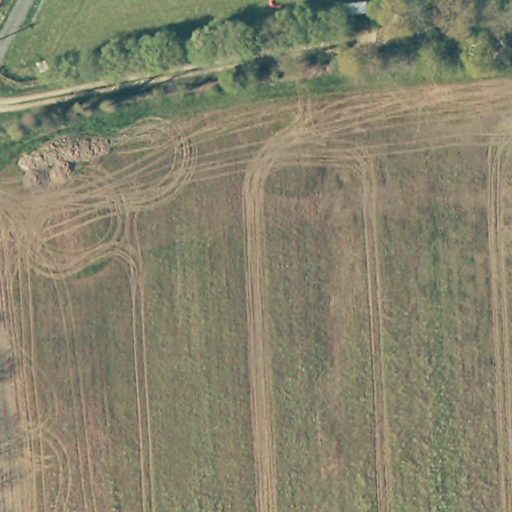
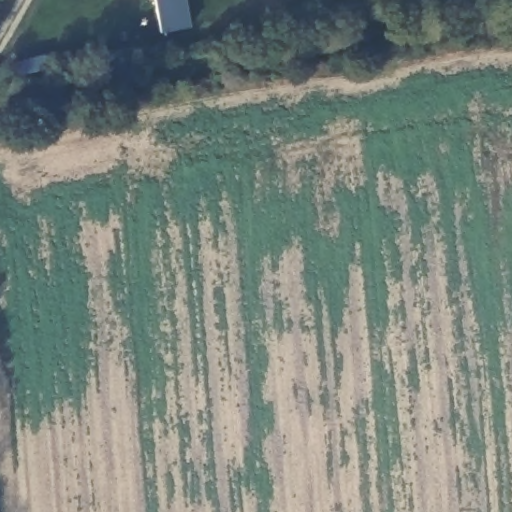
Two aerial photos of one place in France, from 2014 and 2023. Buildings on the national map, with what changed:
new [(157,28),(152,0),(185,0),(190,26),(157,28)]

